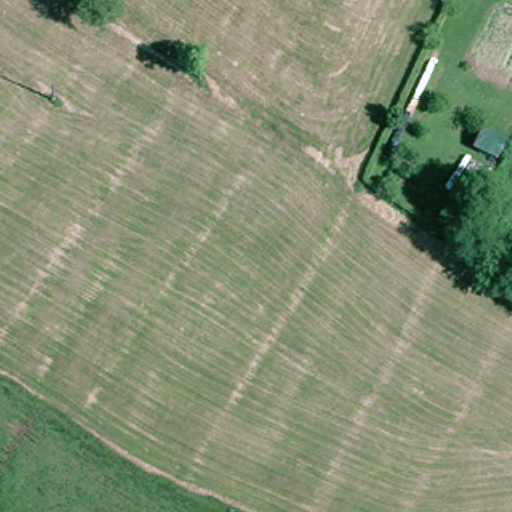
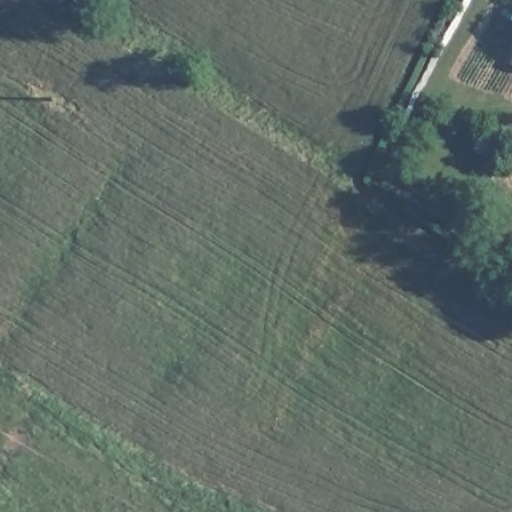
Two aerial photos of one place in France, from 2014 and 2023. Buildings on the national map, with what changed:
unchanged [(512,137),(512,159),(492,150),(500,132),(512,137)]

